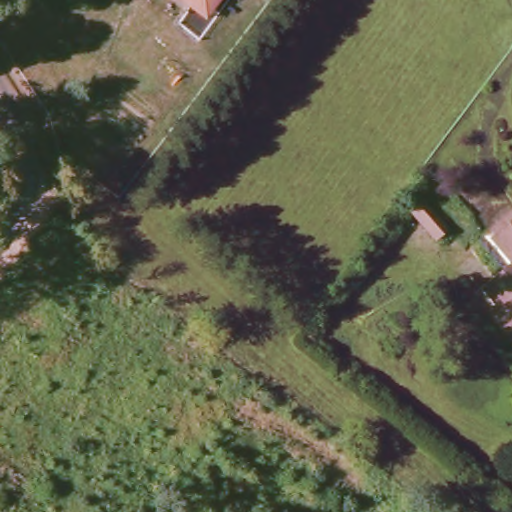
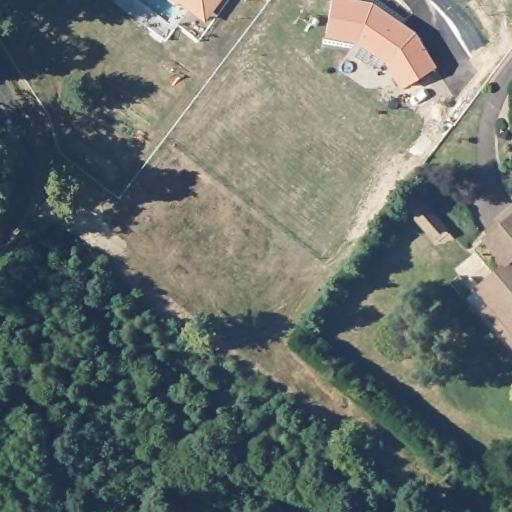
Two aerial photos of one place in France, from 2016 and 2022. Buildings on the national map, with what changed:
unchanged [(195,12),(178,0),(225,0),(209,23),(195,12)]
new [(385,61),(355,41),(324,35),(331,0),(363,0),(371,2),(413,31),(434,66),(400,86),(385,61)]
unchanged [(421,194),(442,218),(432,227),(411,203),(421,194)]
unchanged [(506,334),(490,317),(498,310),(482,293),(510,267),(488,243),(512,221),(512,340),(506,334)]

